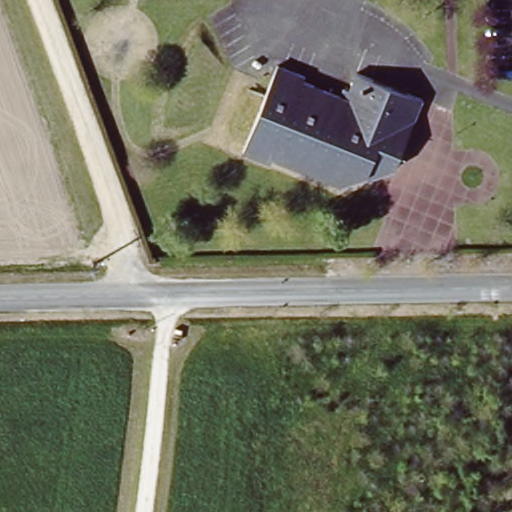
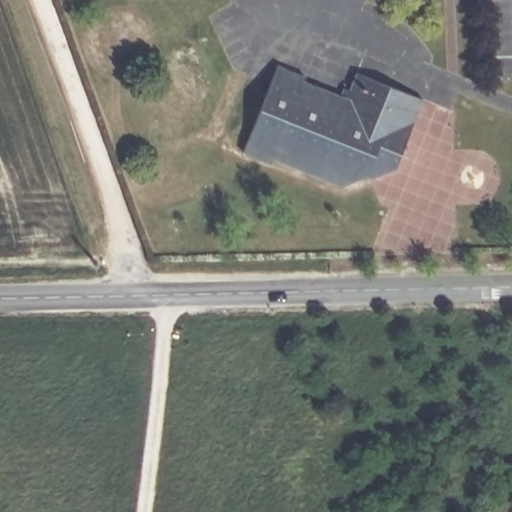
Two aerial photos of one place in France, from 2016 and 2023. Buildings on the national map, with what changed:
unchanged [(427,105),(403,166),(378,177),(359,171),(339,177),(269,147),(265,157),(232,144),(263,69),(297,84),(295,90),(337,107),(343,94),(360,101),(368,82),(427,105)]

